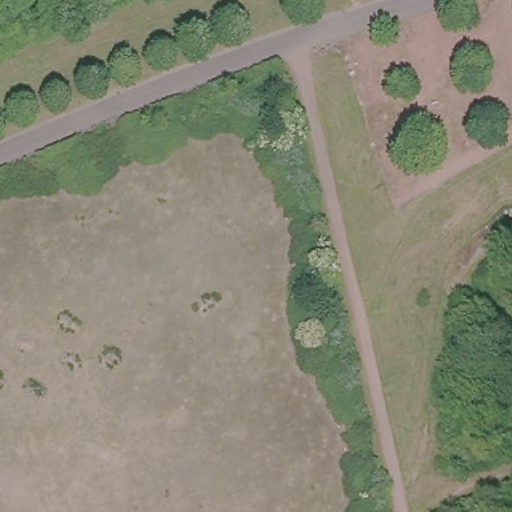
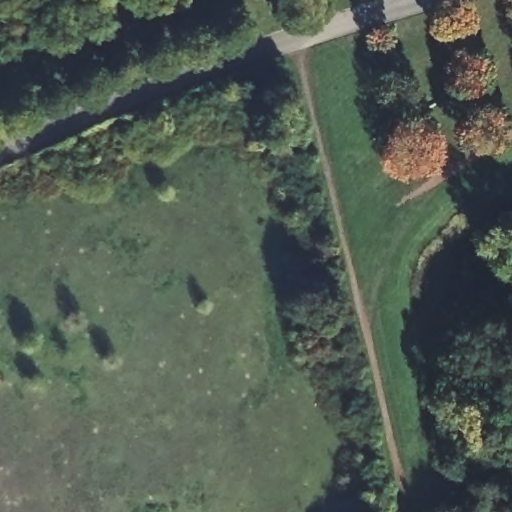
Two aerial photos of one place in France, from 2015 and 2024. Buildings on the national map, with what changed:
[]

